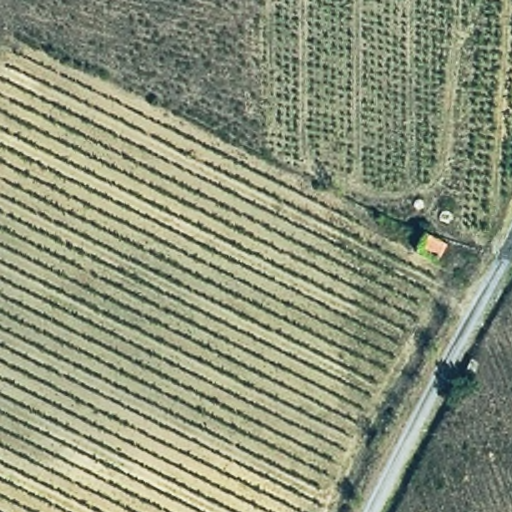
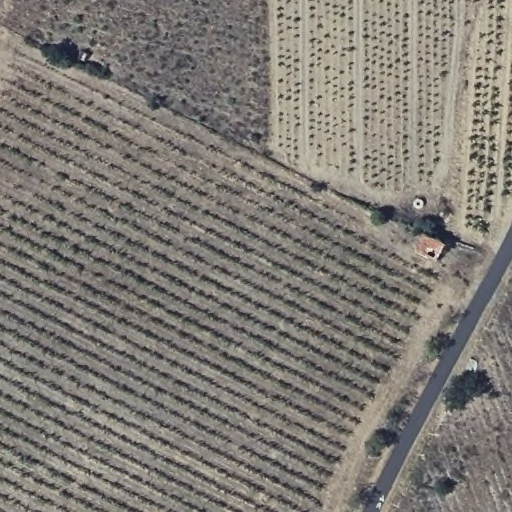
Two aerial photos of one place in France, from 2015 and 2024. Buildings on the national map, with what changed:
unchanged [(447,243),(437,256),(412,245),(423,232),(447,243)]

